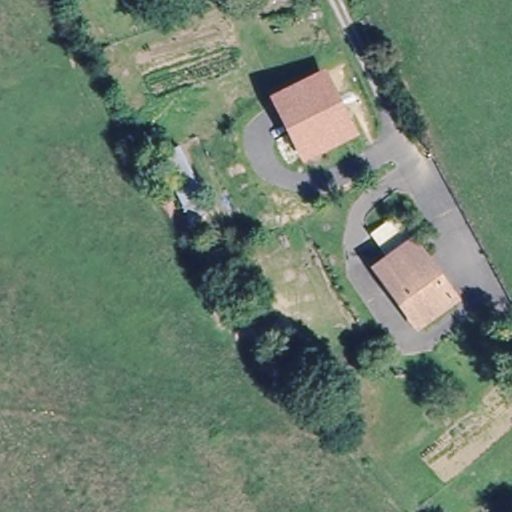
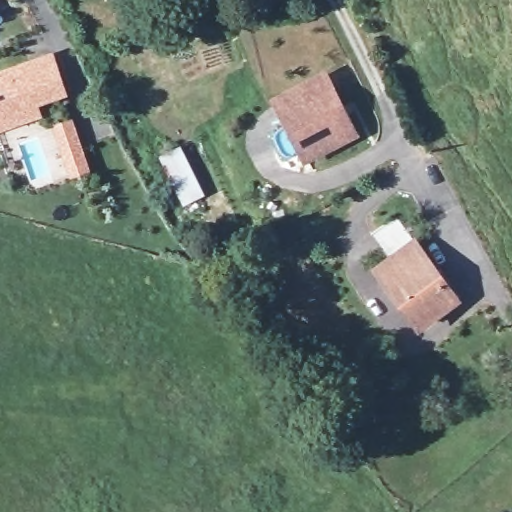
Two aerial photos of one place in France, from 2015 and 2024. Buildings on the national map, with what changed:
new [(57,71),(63,90),(34,99),(38,110),(0,123),(0,69),(51,51),(57,71)]
unchanged [(287,121),(276,100),(322,76),(352,133),(314,152),(305,157),(287,121)]
new [(74,170),(72,164),(68,151),(58,122),(72,117),(82,146),(86,159),(88,165),(74,170)]
unchanged [(456,300),(419,326),(377,270),(414,244),(456,300)]

